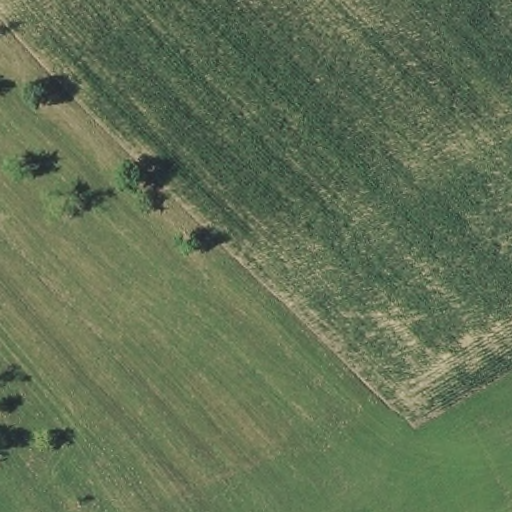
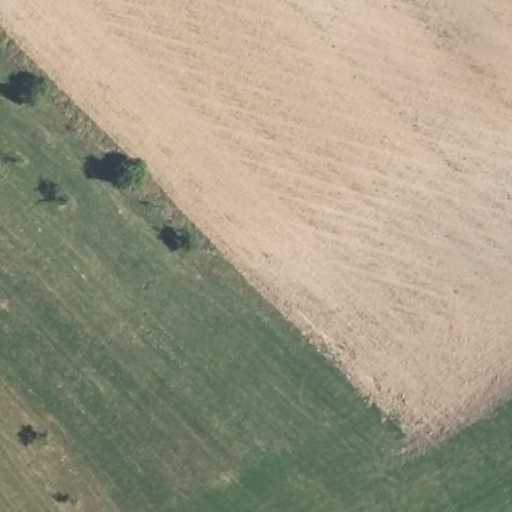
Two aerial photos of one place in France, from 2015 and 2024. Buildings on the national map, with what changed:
[]

